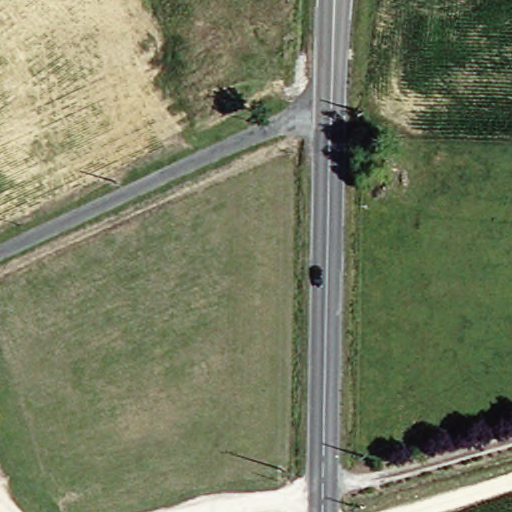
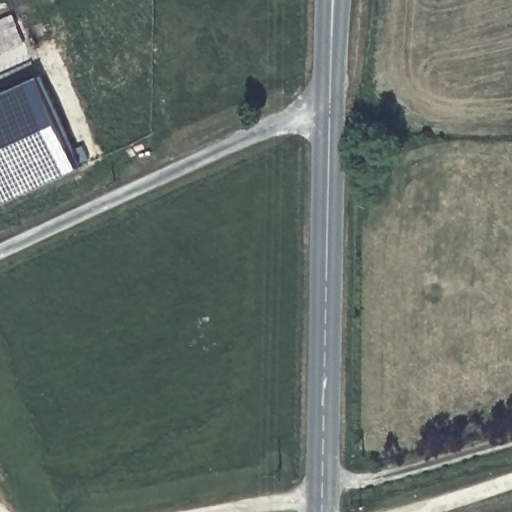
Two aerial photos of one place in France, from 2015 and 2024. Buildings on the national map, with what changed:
new [(0,204),(0,93),(44,73),(85,164),(0,204)]

